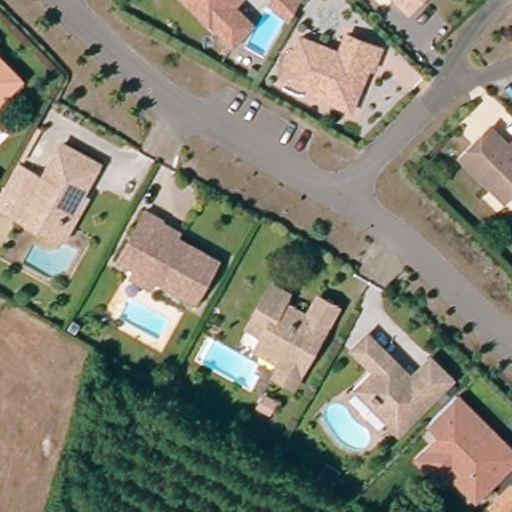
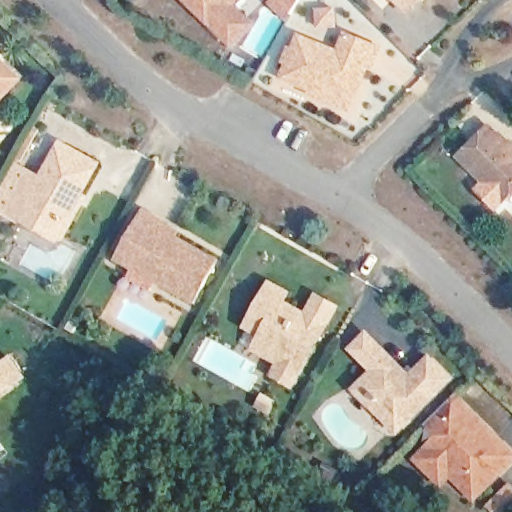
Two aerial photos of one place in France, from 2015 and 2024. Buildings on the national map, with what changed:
unchanged [(225,9),(245,29),(226,47),(178,0),(233,0),(225,9)]
unchanged [(270,2),(267,0),(295,0),(296,1),(286,19),(270,2)]
unchanged [(406,16),(389,0),(422,0),(406,16)]
unchanged [(374,43),(365,63),(357,60),(340,98),(275,72),(283,57),(278,56),(283,44),(287,44),(294,30),(332,47),(340,28),(374,43)]
unchanged [(13,75),(0,88),(0,63),(13,75)]
unchanged [(512,186),(498,200),(453,157),(484,127),(512,157),(512,186)]
unchanged [(62,240),(53,242),(18,222),(0,212),(0,188),(12,166),(39,182),(59,147),(95,167),(78,198),(83,201),(62,240)]
unchanged [(121,282),(127,273),(109,263),(138,213),(154,222),(153,225),(170,235),(167,239),(211,263),(187,307),(149,284),(145,295),(121,282)]
unchanged [(257,338),(259,339),(262,334),(244,325),(267,283),(284,291),(279,300),(304,313),(314,295),(334,307),(323,324),(315,340),(310,339),(301,353),(305,357),(291,385),(271,375),(278,363),(252,347),(257,338)]
unchanged [(378,419),(366,407),(347,389),(368,369),(345,347),(360,332),(404,376),(423,358),(443,378),(397,425),(391,432),(378,419)]
new [(11,362),(24,380),(0,397),(0,370),(11,362)]
unchanged [(443,484),(432,473),(417,458),(441,435),(429,422),(457,394),(498,436),(503,441),(512,450),(512,462),(480,495),(476,498),(452,475),(443,484)]

